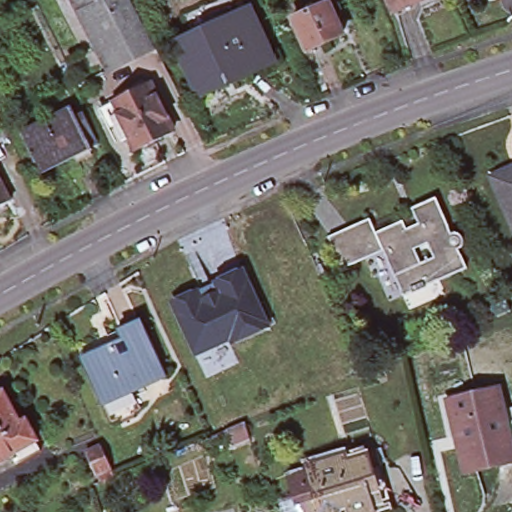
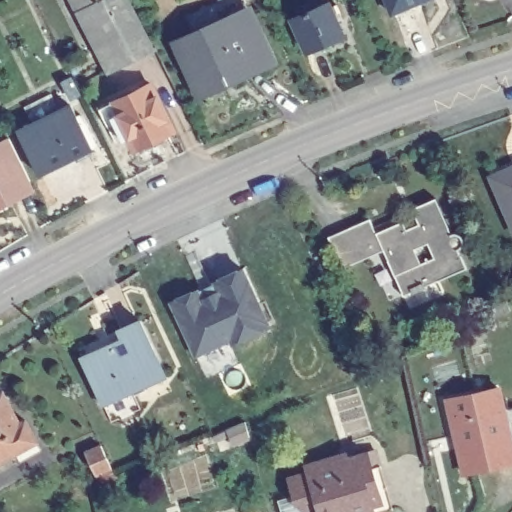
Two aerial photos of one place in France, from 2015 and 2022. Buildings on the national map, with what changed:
unchanged [(75,7),(72,0),(90,0),(75,7)]
unchanged [(147,47),(103,67),(75,7),(90,0),(126,0),(147,47)]
unchanged [(292,16),(329,0),(344,33),(307,49),(292,16)]
unchanged [(387,0),(414,0),(392,10),(387,0)]
unchanged [(201,87),(178,35),(200,25),(200,27),(250,5),(270,51),(222,73),(224,77),(201,87)]
unchanged [(112,118),(106,106),(147,87),(169,134),(129,153),(124,141),(116,145),(105,121),(112,118)]
unchanged [(87,148),(85,149),(84,147),(38,169),(39,170),(37,171),(15,127),(18,126),(19,127),(64,106),(63,104),(67,102),(87,148)]
new [(0,209),(0,141),(9,137),(35,190),(0,209)]
unchanged [(512,225),(490,174),(510,165),(512,169),(512,227),(512,225)]
demolished [(0,205),(0,178),(10,200),(0,205)]
unchanged [(435,196),(450,232),(458,233),(461,237),(462,241),(460,245),(457,247),(465,265),(423,283),(424,285),(412,290),(412,288),(401,293),(381,249),(339,266),(327,234),(367,218),(372,231),(400,219),(404,228),(417,223),(410,206),(435,196)]
unchanged [(215,280),(242,267),(269,324),(232,341),(230,337),(196,353),(174,305),(177,297),(192,290),(200,293),(201,297),(202,297),(200,292),(215,285),(217,290),(219,289),(215,280)]
unchanged [(80,357),(122,338),(118,330),(139,320),(165,375),(102,403),(80,357)]
unchanged [(462,474),(446,402),(497,390),(502,412),(512,410),(512,450),(511,450),(512,455),(512,462),(462,474)]
unchanged [(19,424),(25,421),(35,439),(0,458),(0,392),(2,391),(19,424)]
unchanged [(237,426),(242,441),(222,448),(217,434),(237,426)]
unchanged [(105,471),(90,477),(80,456),(95,449),(105,471)]
unchanged [(304,512),(302,512),(299,500),(295,501),(287,477),(307,471),(305,464),(344,452),(345,457),(365,451),(370,467),(379,465),(392,508),(381,512),(319,512),(318,507),(304,512)]

